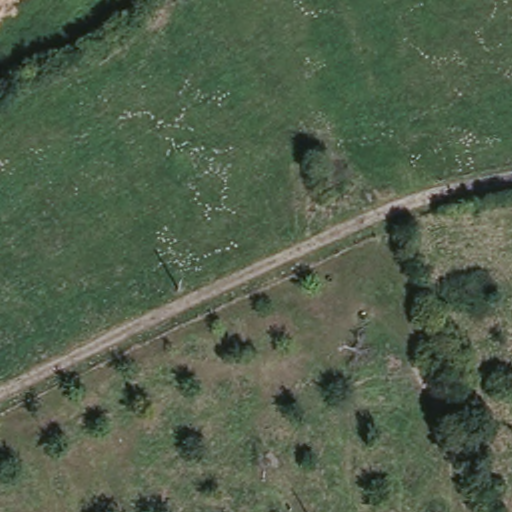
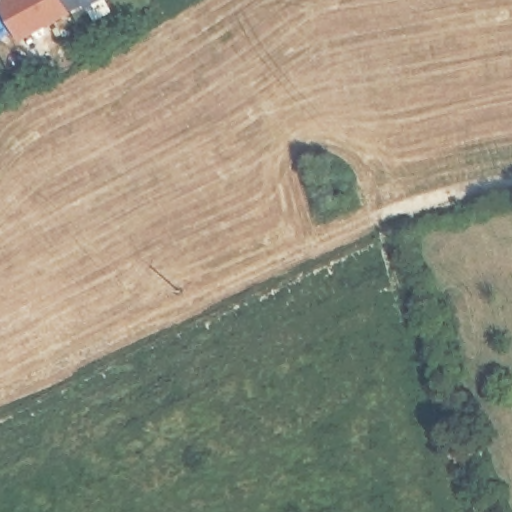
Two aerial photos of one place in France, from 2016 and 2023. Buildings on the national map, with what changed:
new [(0,12),(0,6),(11,0),(60,0),(69,15),(17,44),(0,12)]
new [(82,8),(69,15),(60,0),(102,0),(84,11),(82,8)]

